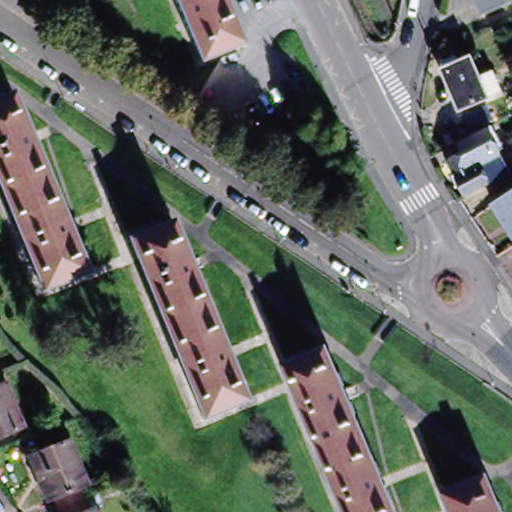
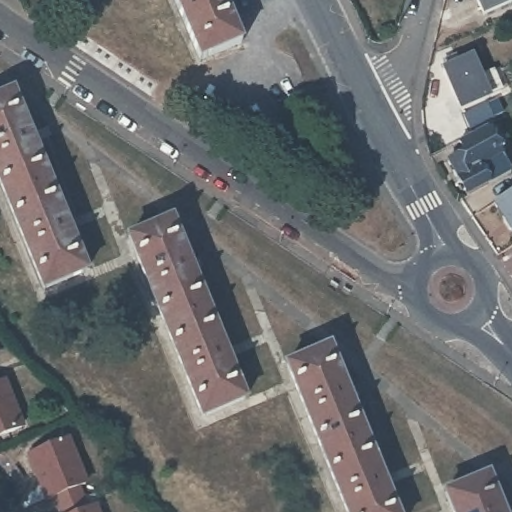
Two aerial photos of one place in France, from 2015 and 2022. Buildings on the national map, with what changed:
unchanged [(172,0),(220,0),(240,46),(199,64),(172,0)]
unchanged [(478,0),(511,0),(512,2),(512,4),(485,15),(478,0)]
unchanged [(436,63),(451,56),(454,62),(467,57),(476,74),(487,69),(497,88),(484,94),(456,106),(436,63)]
unchanged [(0,194),(0,103),(10,99),(83,275),(41,292),(0,194)]
unchanged [(467,130),(460,112),(483,101),(492,119),(467,130)]
unchanged [(443,162),(461,152),(456,144),(485,128),(497,151),(510,171),(486,185),(465,197),(443,162)]
unchanged [(302,175),(277,146),(292,133),(317,162),(302,175)]
unchanged [(496,206),(497,206),(512,196),(512,230),(496,206)]
unchanged [(204,421),(132,250),(172,232),(245,404),(204,421)]
unchanged [(295,373),(336,355),(402,512),(353,512),(295,373)]
unchanged [(22,429),(0,438),(0,387),(5,386),(22,429)]
unchanged [(79,492),(83,503),(61,512),(57,502),(49,505),(31,460),(68,445),(86,489),(79,492)]
unchanged [(451,501),(491,485),(502,512),(455,512),(451,501)]
unchanged [(87,512),(61,512),(83,503),(87,512)]

